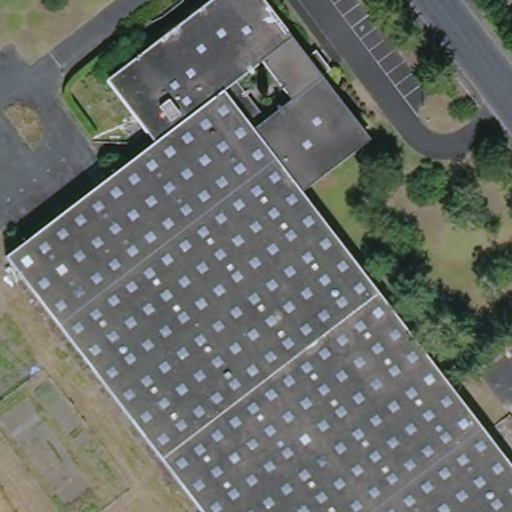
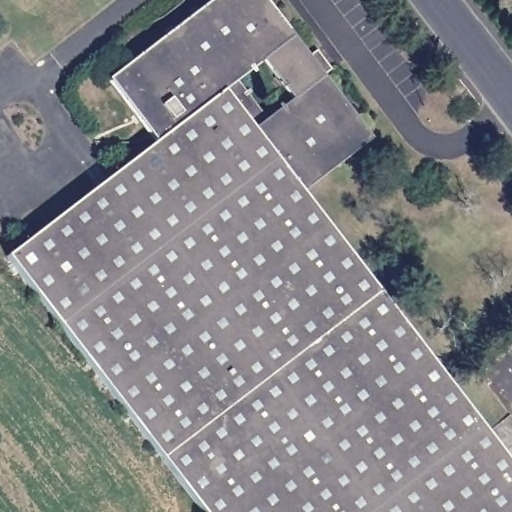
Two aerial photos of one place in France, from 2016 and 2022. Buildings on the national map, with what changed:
unchanged [(7,256),(157,141),(110,81),(217,0),(258,0),(304,61),(312,55),(325,72),(317,77),(365,139),(298,190),(512,470),(512,512),(201,512),(7,256)]

